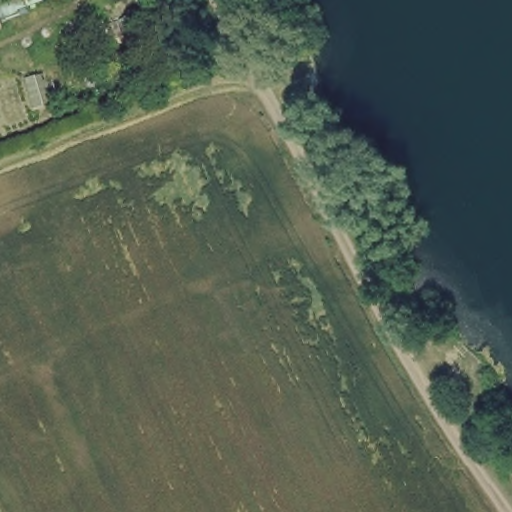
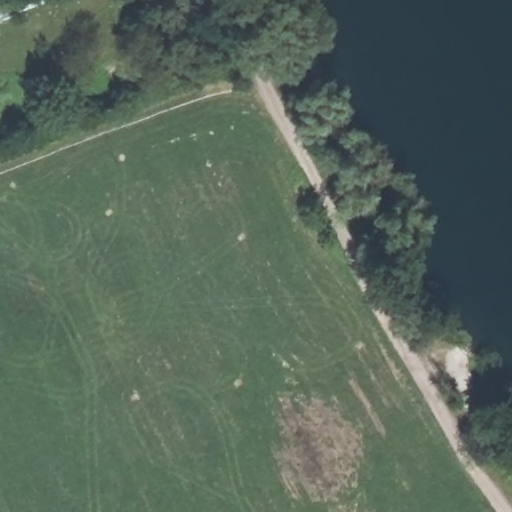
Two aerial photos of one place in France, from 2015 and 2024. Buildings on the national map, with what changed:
unchanged [(0,7),(0,0),(5,0),(7,3),(0,7)]

